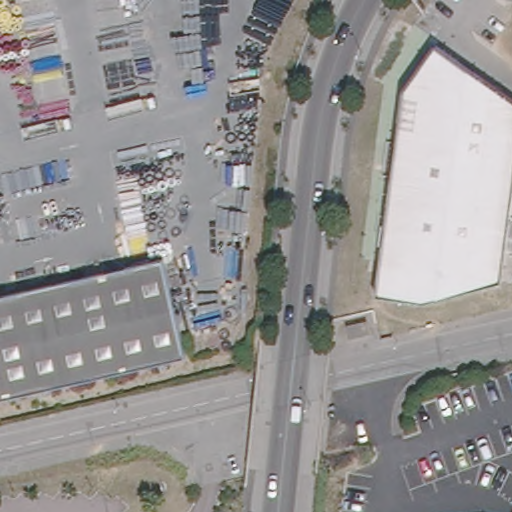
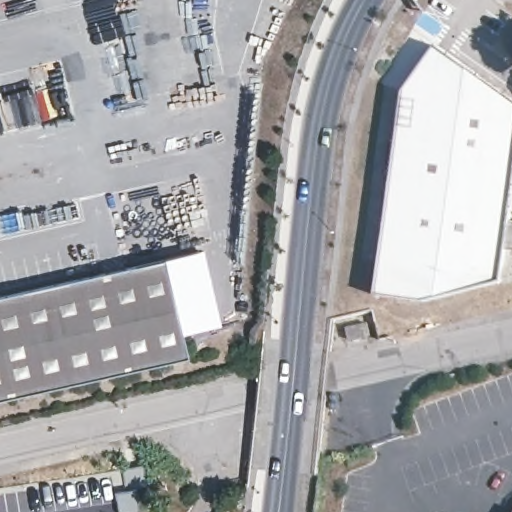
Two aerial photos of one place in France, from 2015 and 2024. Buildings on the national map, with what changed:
unchanged [(502,282),(430,297),(378,296),(390,204),(404,92),(440,48),(480,76),(512,99),(512,216),(511,226),(502,282)]
new [(220,325),(178,335),(163,260),(202,250),(220,325)]
unchanged [(163,260),(184,360),(52,389),(0,401),(0,296),(150,263),(163,260)]
unchanged [(346,327),(366,322),(369,335),(348,340),(346,327)]

